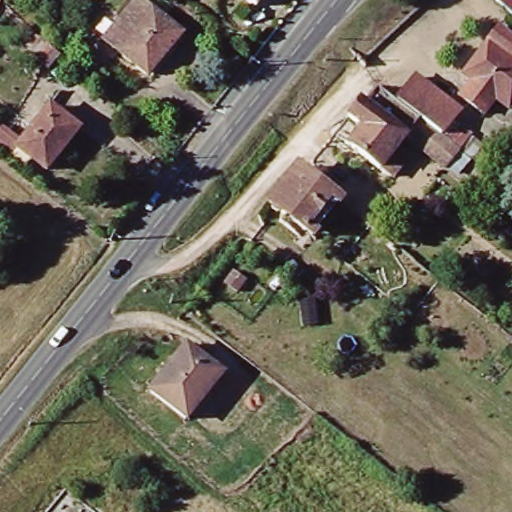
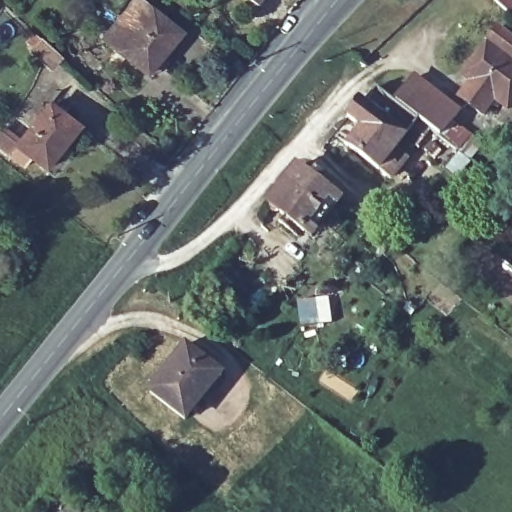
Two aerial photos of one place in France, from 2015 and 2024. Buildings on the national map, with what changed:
unchanged [(97,34),(126,0),(139,0),(188,40),(154,82),(97,34)]
unchanged [(512,0),(512,15),(496,0),(512,0)]
unchanged [(459,97),(472,78),(465,68),(502,27),(512,36),(512,106),(509,110),(497,100),(483,116),(459,97)]
unchanged [(41,42),(60,60),(50,71),(31,54),(41,42)]
unchanged [(348,150),(361,131),(343,118),(356,102),(363,106),(380,87),(396,101),(417,74),(460,108),(455,117),(471,133),(467,137),(480,148),(456,177),(443,167),(441,170),(413,147),(387,181),(379,173),(348,150)]
unchanged [(18,149),(51,109),(79,132),(45,172),(18,149)]
unchanged [(290,212),(273,196),(301,164),(315,177),(320,170),(334,182),(329,187),(341,196),(305,242),(281,222),(290,212)]
unchanged [(184,346),(217,373),(185,413),(151,386),(184,346)]
unchanged [(65,498),(81,512),(54,512),(65,498)]

